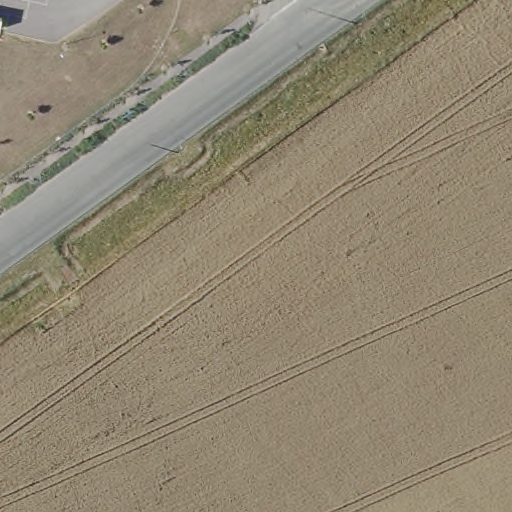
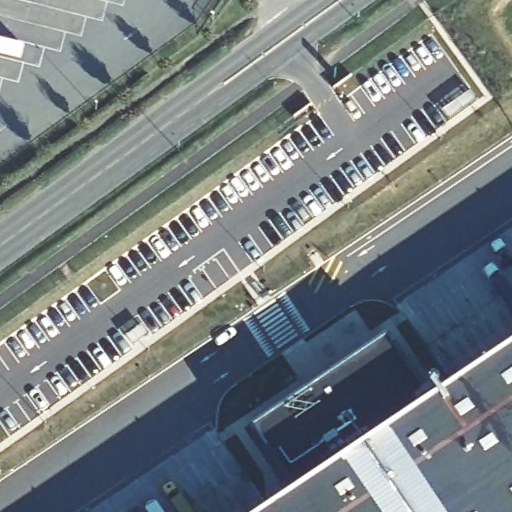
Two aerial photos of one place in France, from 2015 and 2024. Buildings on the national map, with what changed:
new [(252,428),(387,337),(430,401),(295,492),(252,428)]
new [(430,401),(512,346),(512,512),(265,512),(295,492),(430,401)]

